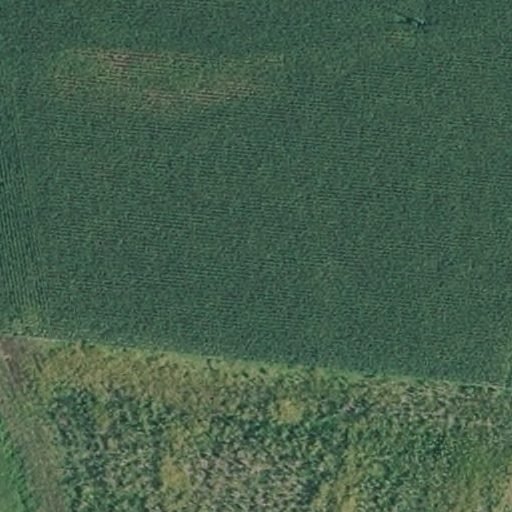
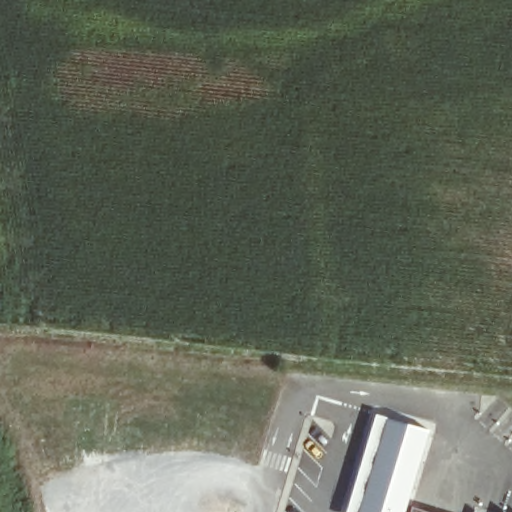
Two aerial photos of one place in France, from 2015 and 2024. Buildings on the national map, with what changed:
new [(430,431),(407,512),(349,512),(375,416),(430,431)]

